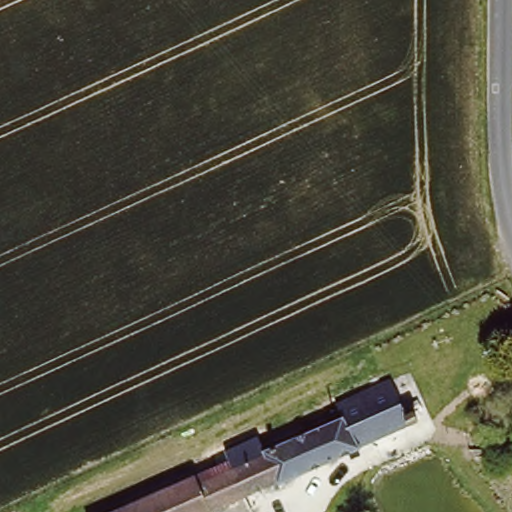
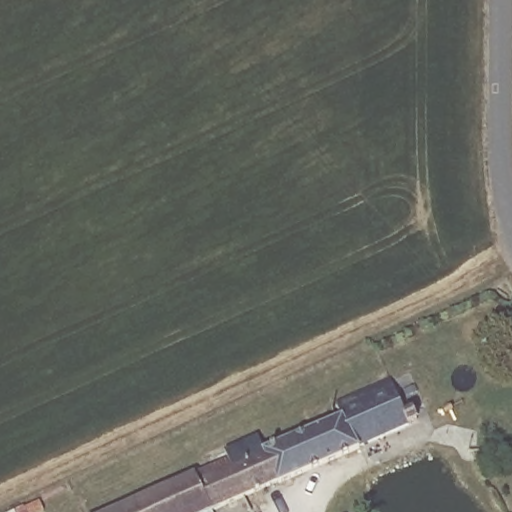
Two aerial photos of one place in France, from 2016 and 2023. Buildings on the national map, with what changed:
unchanged [(409,412),(418,408),(421,417),(361,443),(361,444),(207,512),(111,512),(233,458),(228,447),(262,433),(268,446),(345,413),(339,401),(394,378),(409,412)]

